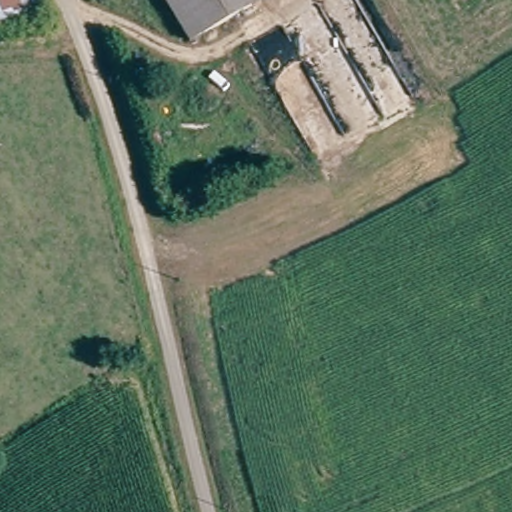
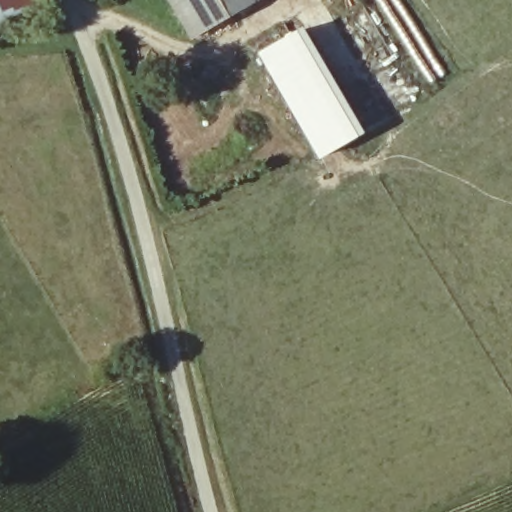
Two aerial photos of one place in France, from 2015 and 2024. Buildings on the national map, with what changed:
unchanged [(0,20),(0,0),(29,0),(32,7),(2,20),(0,20)]
unchanged [(243,9),(193,36),(171,0),(238,0),(243,9)]
unchanged [(243,9),(238,0),(259,0),(243,9)]
new [(302,26),(363,134),(318,161),(255,53),(302,26)]

